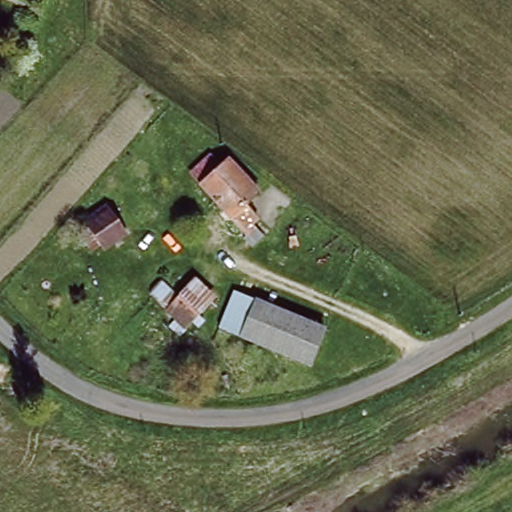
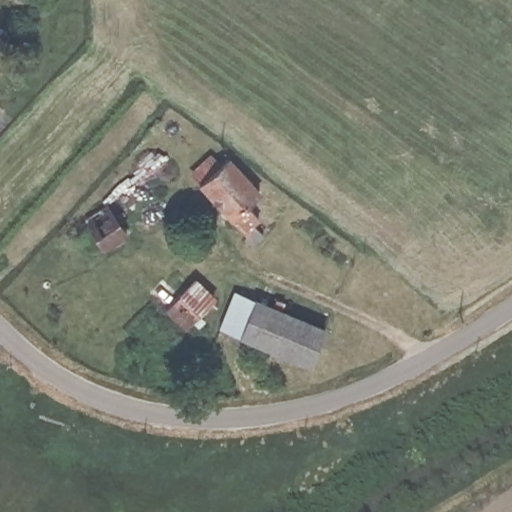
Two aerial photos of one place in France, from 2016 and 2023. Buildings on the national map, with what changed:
unchanged [(192,175),(222,150),(250,184),(235,197),(247,210),(232,223),(192,175)]
unchanged [(80,232),(110,208),(130,232),(100,257),(80,232)]
unchanged [(234,230),(247,220),(255,229),(242,240),(234,230)]
unchanged [(185,293),(200,281),(215,297),(200,310),(202,312),(187,325),(169,303),(183,291),(185,293)]
unchanged [(245,304),(313,323),(305,357),(237,338),(245,304)]

